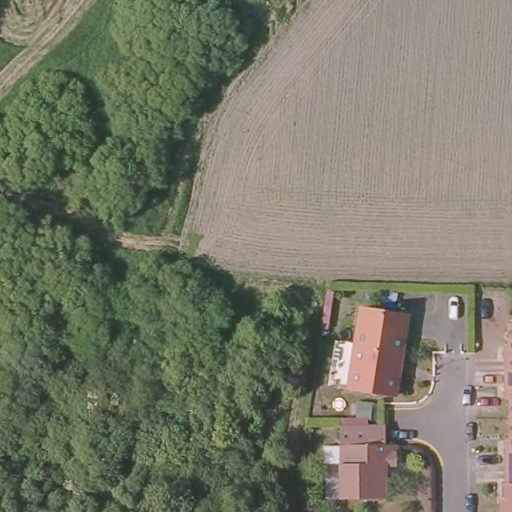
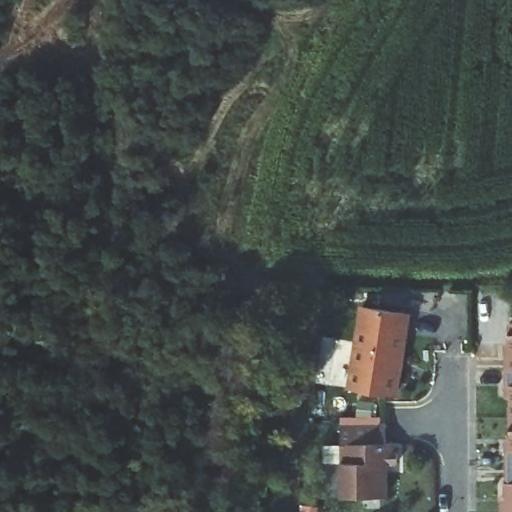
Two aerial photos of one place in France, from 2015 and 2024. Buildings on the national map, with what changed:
unchanged [(396,397),(349,390),(362,310),(408,318),(396,397)]
unchanged [(498,495),(504,495),(504,482),(506,482),(506,465),(505,450),(505,437),(511,437),(511,415),(511,398),(505,397),(505,385),(505,369),(505,354),(505,341),(510,341),(510,321),(512,322),(512,512),(499,512),(499,503),(498,495)]
unchanged [(387,447),(395,447),(395,467),(382,467),(381,472),(385,476),(385,500),(340,501),(340,466),(325,466),(325,448),(339,448),(339,427),(350,427),(386,427),(387,447)]

